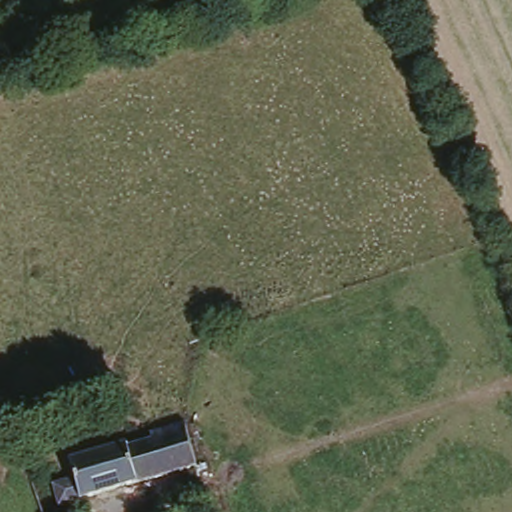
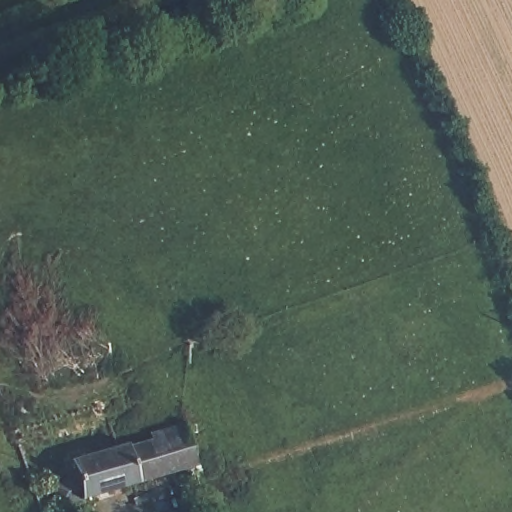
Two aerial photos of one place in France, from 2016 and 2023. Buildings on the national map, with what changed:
unchanged [(135,441),(135,446),(158,437),(157,427),(187,420),(200,469),(69,504),(61,482),(81,475),(78,459),(125,443),(135,441)]

